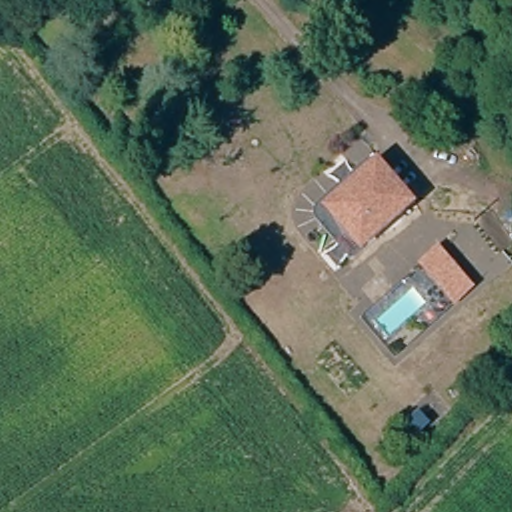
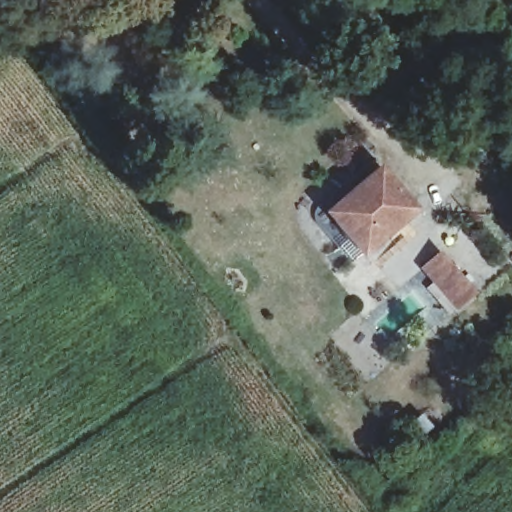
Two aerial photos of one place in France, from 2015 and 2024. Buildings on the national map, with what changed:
unchanged [(364,252),(334,217),(349,205),(345,200),(378,171),(412,211),(364,252)]
unchanged [(473,293),(457,307),(425,268),(441,255),(473,293)]

